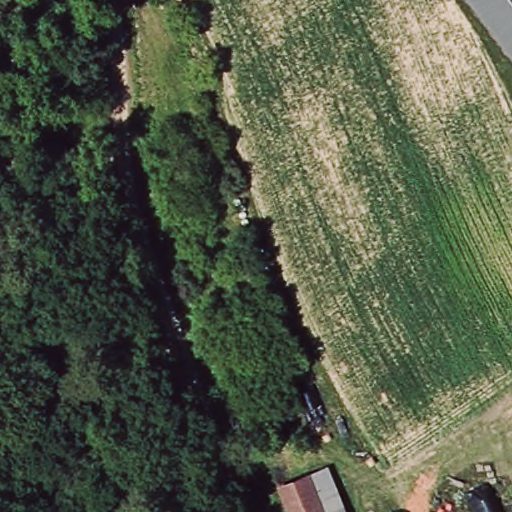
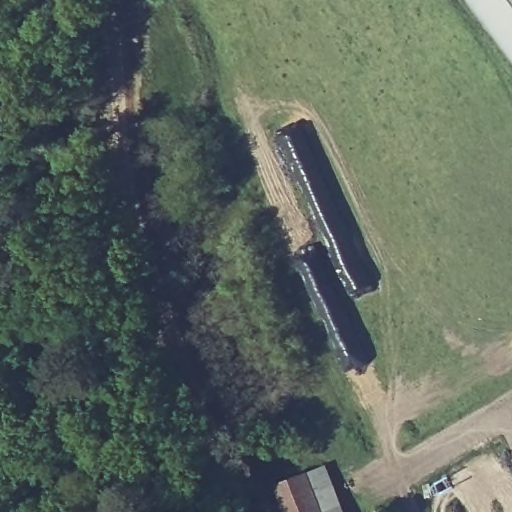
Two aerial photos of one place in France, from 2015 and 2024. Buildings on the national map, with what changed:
unchanged [(512,59),(467,0),(512,0),(512,59)]
unchanged [(304,479),(329,465),(349,512),(318,512),(313,500),(304,479)]
unchanged [(282,512),(274,492),(304,479),(313,500),(318,512),(282,512)]

